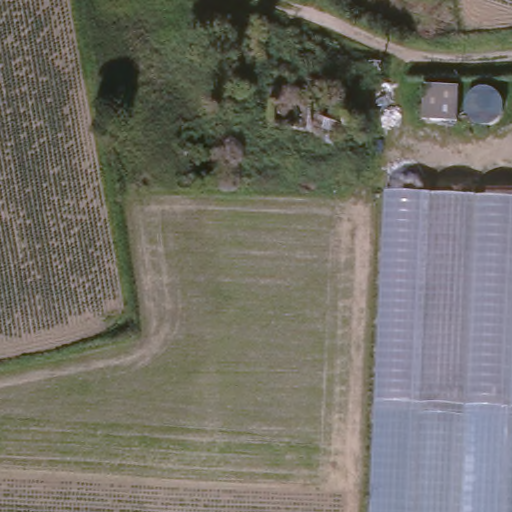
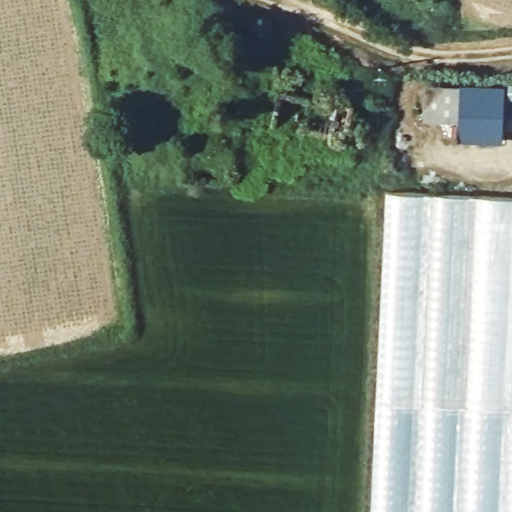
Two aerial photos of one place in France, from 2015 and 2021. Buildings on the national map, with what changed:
new [(458,121),(422,119),(423,85),(460,86),(505,88),(503,142),(458,141),(458,121)]
demolished [(429,116),(433,87),(464,92),(459,121),(429,116)]
unchanged [(380,198),(512,204),(512,512),(363,512),(380,198)]

